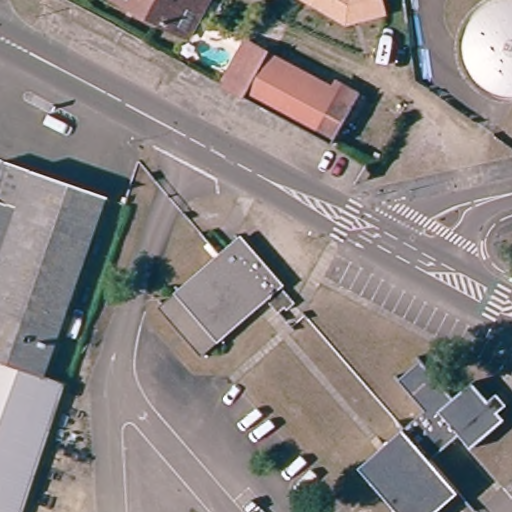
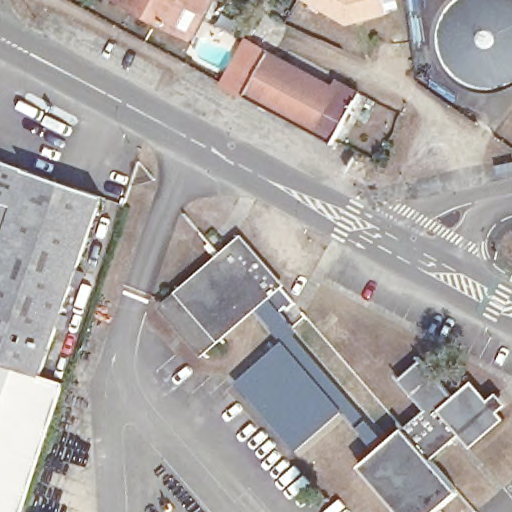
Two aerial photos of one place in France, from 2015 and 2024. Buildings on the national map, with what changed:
unchanged [(187,32),(126,2),(121,0),(204,0),(187,32)]
unchanged [(390,16),(350,21),(316,0),(387,0),(390,16)]
unchanged [(271,48),(246,96),(222,84),(248,37),(271,48)]
unchanged [(332,83),(336,76),(358,89),(330,142),(246,96),(271,48),(332,83)]
unchanged [(36,377),(0,365),(0,166),(100,201),(36,377)]
unchanged [(297,292),(289,299),(287,296),(280,302),(267,286),(189,351),(152,306),(244,230),(297,292)]
new [(343,410),(296,453),(237,382),(283,341),(343,410)]
unchanged [(405,512),(362,460),(431,402),(402,366),(424,348),(455,384),(473,369),(508,408),(473,437),(462,424),(434,447),(461,481),(425,512),(405,512)]
unchanged [(57,385),(18,512),(0,512),(0,365),(36,377),(57,385)]

